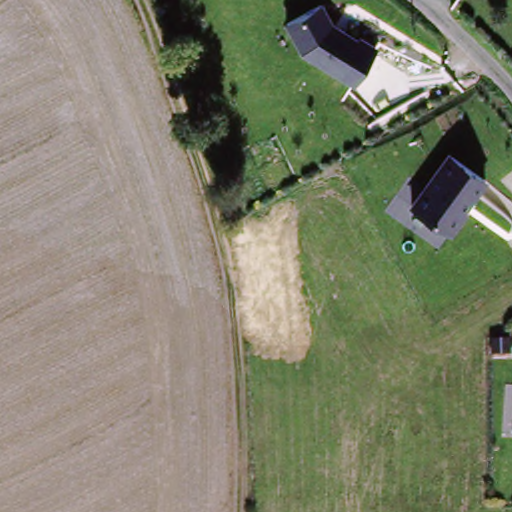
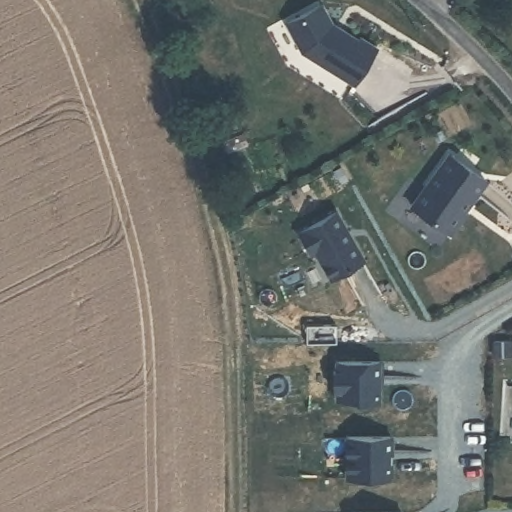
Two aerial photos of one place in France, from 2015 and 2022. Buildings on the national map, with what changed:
unchanged [(332,23),(376,48),(355,86),(298,52),(282,23),(324,2),(332,23)]
unchanged [(487,178),(450,235),(409,207),(445,153),(487,178)]
new [(367,256),(335,275),(319,248),(315,251),(302,229),(339,208),(367,256)]
new [(385,384),(383,384),(383,400),(363,400),(360,398),(341,398),(340,388),(338,388),(338,370),(340,370),(340,360),(385,360),(385,384)]
new [(347,437),(393,436),(393,453),(389,453),(389,462),(393,462),(393,472),(389,477),(348,478),(347,437)]

